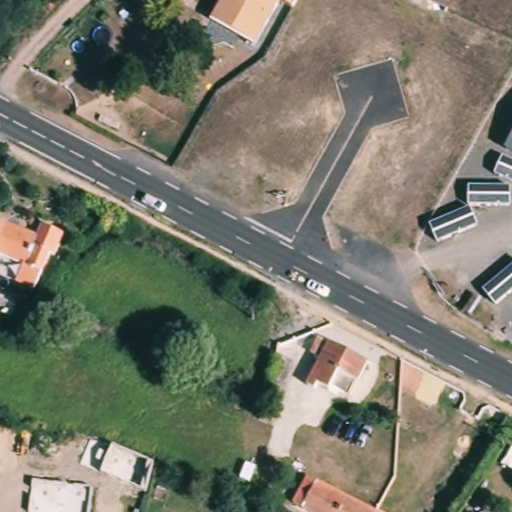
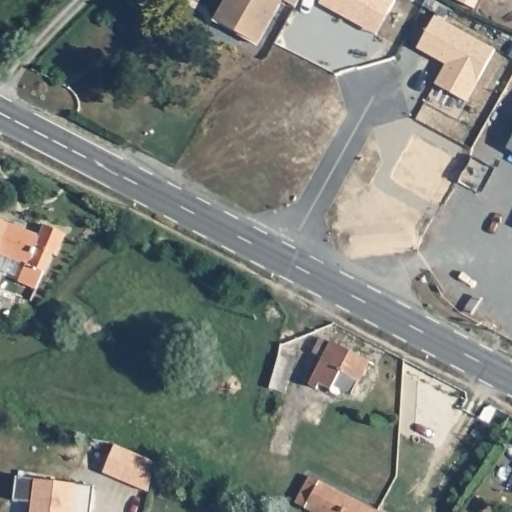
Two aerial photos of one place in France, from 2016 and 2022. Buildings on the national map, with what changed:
unchanged [(280,0),(257,44),(212,19),(223,0),(280,0)]
unchanged [(284,0),(297,0),(295,5),(284,0)]
new [(316,4),(319,0),(389,0),(392,1),(385,14),(373,36),(360,29),(316,4)]
new [(433,15),(495,48),(466,100),(434,82),(445,63),(416,46),(433,15)]
unchanged [(506,149),(512,137),(512,152),(506,149)]
unchanged [(0,221),(6,224),(0,240),(0,221)]
unchanged [(43,226),(64,234),(56,256),(51,254),(35,289),(17,282),(24,264),(0,254),(0,240),(6,224),(39,236),(43,226)]
unchanged [(7,316),(0,314),(0,297),(12,301),(7,316)]
unchanged [(351,395),(340,389),(337,394),(318,384),(316,389),(307,386),(322,359),(312,353),(321,339),(329,343),(330,342),(368,362),(351,395)]
unchanged [(286,388),(268,383),(276,356),(293,361),(286,388)]
unchanged [(112,444),(155,462),(147,491),(100,473),(112,444)]
unchanged [(32,478),(91,484),(88,512),(28,512),(32,478)]
unchanged [(295,509),(309,482),(369,512),(301,512),(295,509)]

